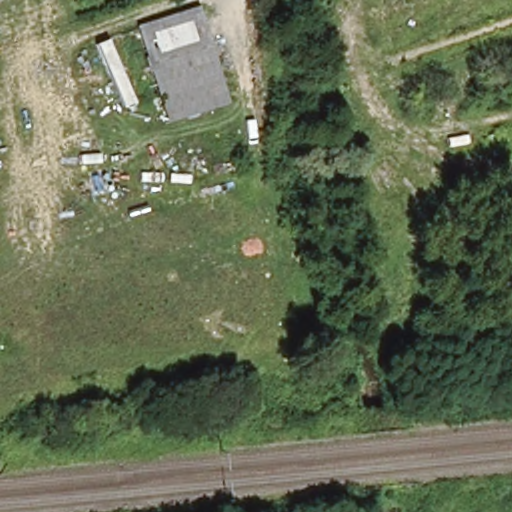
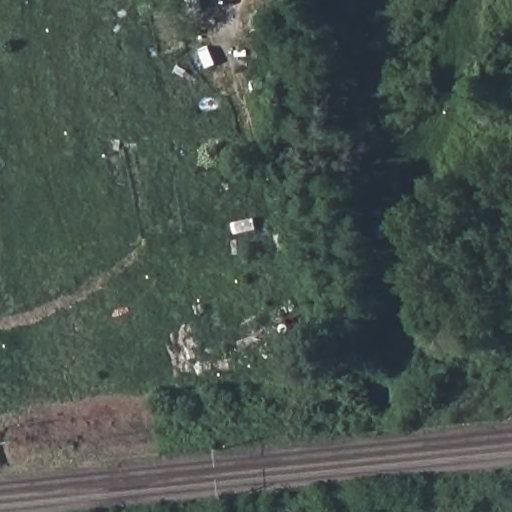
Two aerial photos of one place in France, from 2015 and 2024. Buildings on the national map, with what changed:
demolished [(231,101),(168,122),(147,57),(211,37),(231,101)]

